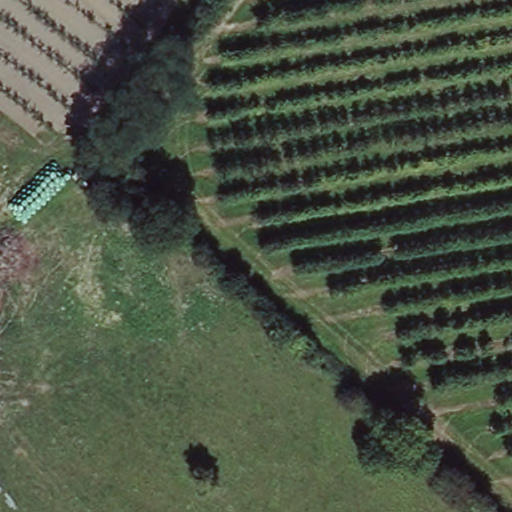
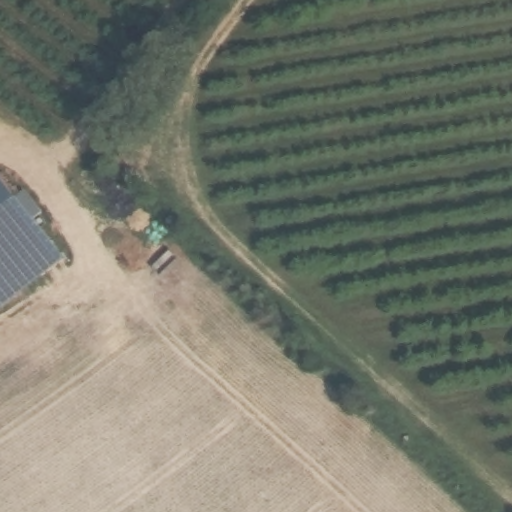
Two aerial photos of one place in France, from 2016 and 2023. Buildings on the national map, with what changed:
new [(74,257),(0,320),(0,168),(74,257)]

